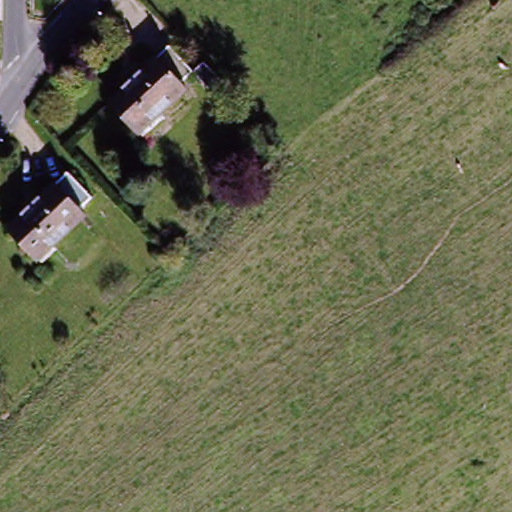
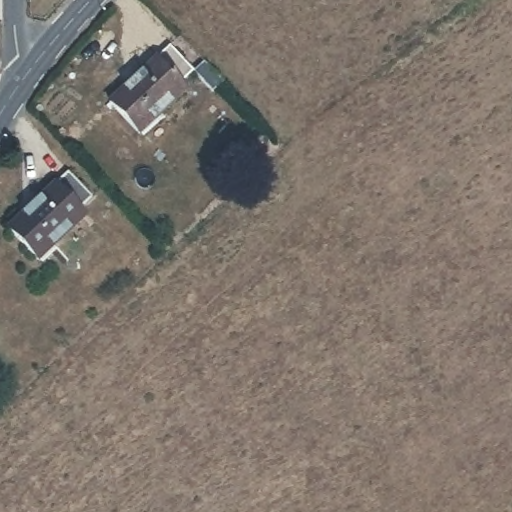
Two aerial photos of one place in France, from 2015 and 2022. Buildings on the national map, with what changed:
unchanged [(168,54),(192,79),(181,88),(186,95),(140,138),(112,110),(168,54)]
unchanged [(70,176),(93,201),(84,209),(90,218),(41,262),(12,232),(70,176)]

